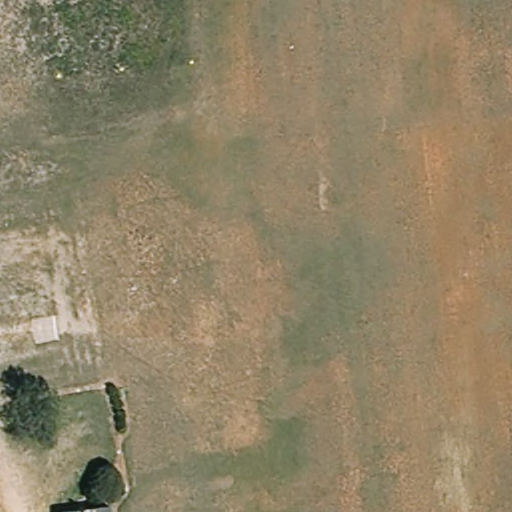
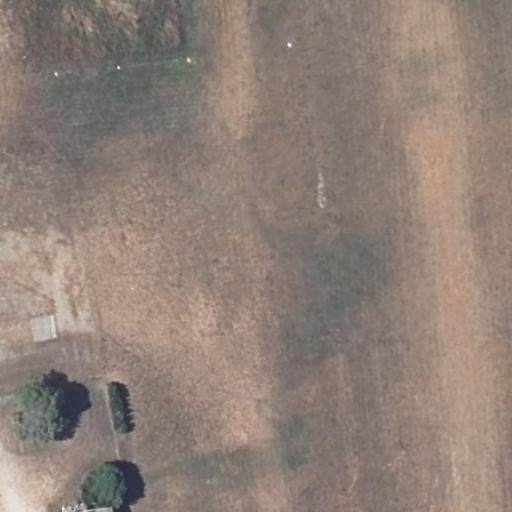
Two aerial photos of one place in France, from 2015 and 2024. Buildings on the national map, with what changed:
unchanged [(107,512),(59,512),(58,508),(107,505),(107,512)]

